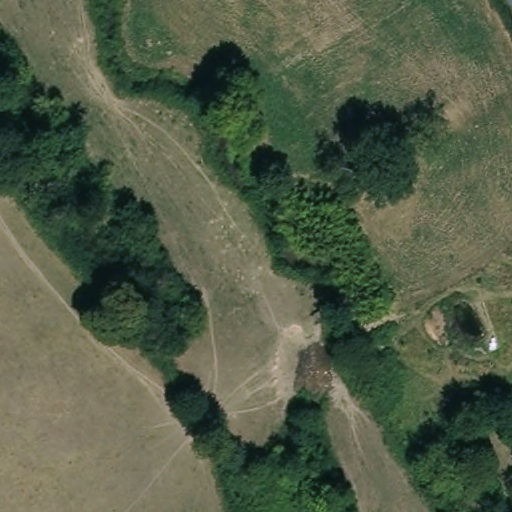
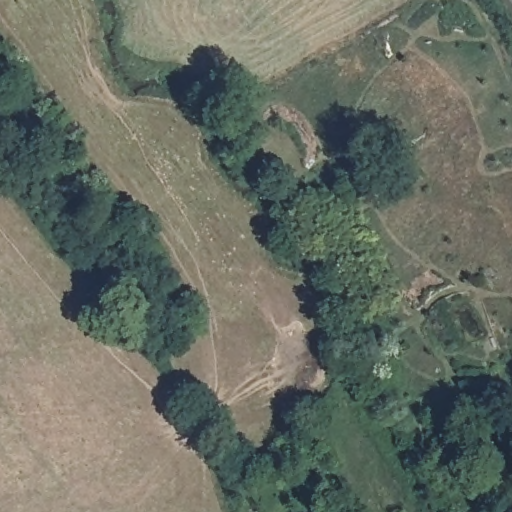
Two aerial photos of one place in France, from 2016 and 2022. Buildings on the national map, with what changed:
[]

